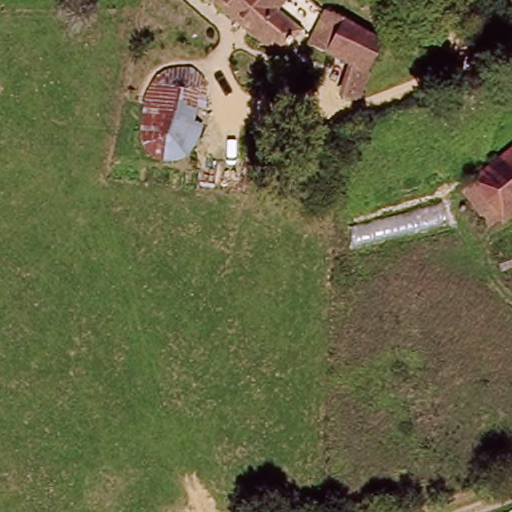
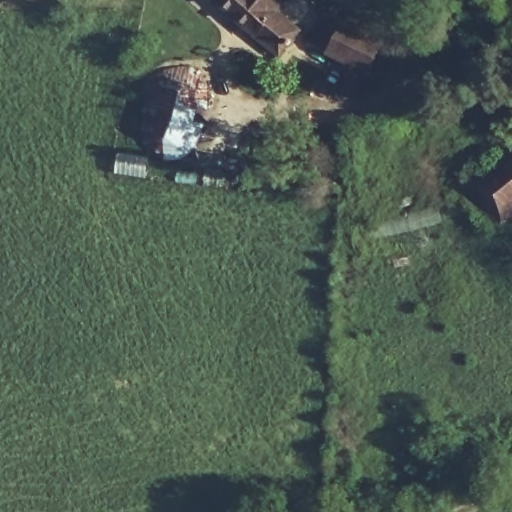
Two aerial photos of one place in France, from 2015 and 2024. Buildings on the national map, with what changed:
unchanged [(256,36),(211,0),(262,0),(275,11),(256,36)]
unchanged [(282,13),(302,30),(282,56),(256,36),(275,11),(262,0),(293,0),(282,13)]
unchanged [(360,101),(349,96),(354,64),(315,45),(322,30),(332,16),(387,42),(370,71),(360,101)]
unchanged [(195,106),(190,121),(200,125),(192,151),(181,160),(172,165),(162,164),(147,155),(144,142),(152,101),(159,81),(168,72),(180,70),(191,73),(204,83),(207,90),(204,108),(195,106)]
unchanged [(489,226),(461,193),(475,182),(472,177),(512,147),(512,214),(502,221),(500,219),(489,226)]

